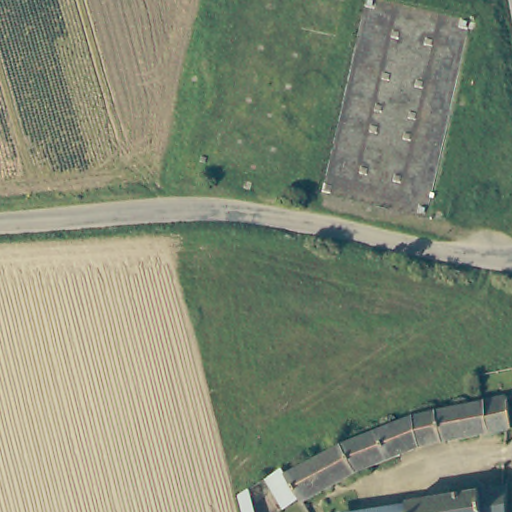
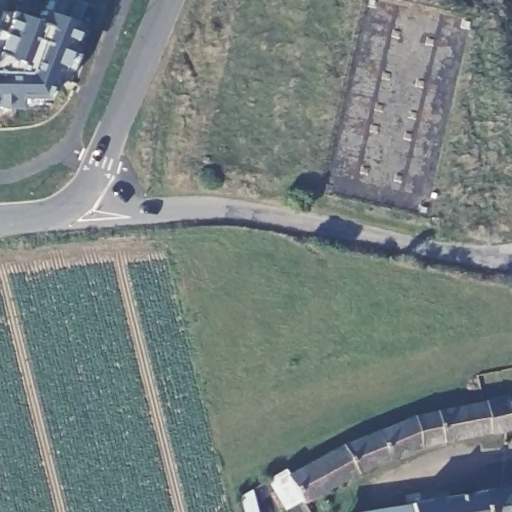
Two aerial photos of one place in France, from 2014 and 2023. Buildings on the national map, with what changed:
new [(12,71),(15,64),(0,58),(0,31),(9,11),(37,23),(42,11),(78,25),(68,48),(78,53),(67,82),(57,77),(46,106),(0,107),(0,71),(12,71)]
unchanged [(288,203),(291,189),(304,192),(303,206),(288,203)]
unchanged [(279,471),(282,474),(349,441),(407,417),(477,401),(503,395),(508,431),(508,432),(414,449),(348,478),(301,506),(296,501),(279,512),(260,482),(279,471)]
unchanged [(403,512),(401,505),(506,488),(504,512),(403,512)]

